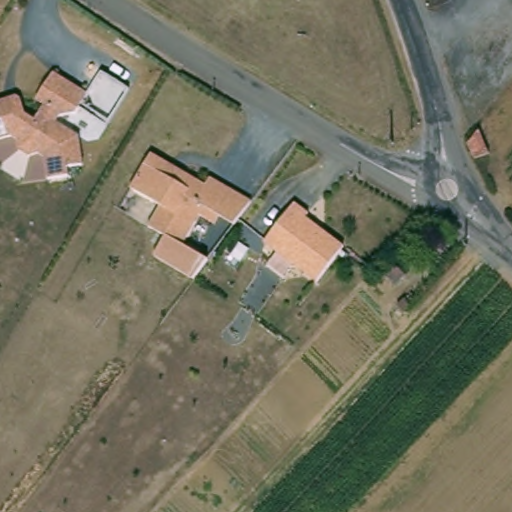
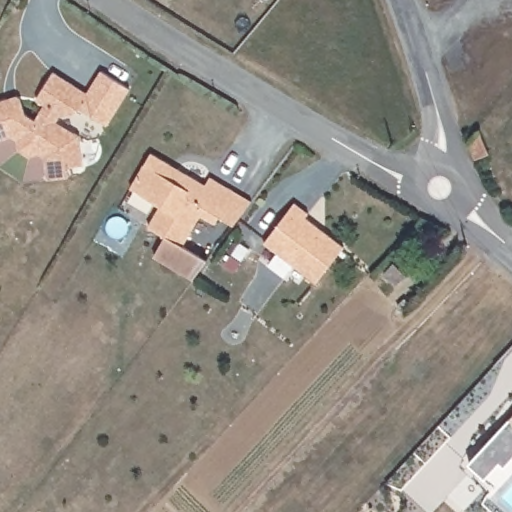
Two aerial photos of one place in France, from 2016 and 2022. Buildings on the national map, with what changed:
unchanged [(84,135),(87,161),(88,165),(85,165),(73,167),(74,177),(53,179),(50,158),(44,154),(34,157),(24,150),(23,140),(16,136),(0,142),(0,104),(11,100),(21,96),(26,96),(28,103),(33,114),(40,119),(49,104),(41,99),(58,72),(93,94),(81,114),(65,115),(61,122),(80,134),(84,135)]
unchanged [(472,144),(483,130),(490,153),(478,159),(472,144)]
unchanged [(236,224),(221,215),(217,224),(202,214),(184,245),(151,225),(163,204),(133,187),(154,153),(208,184),(213,177),(236,191),(253,201),(236,224)]
unchanged [(295,204),(309,214),(306,218),(345,247),(318,283),(265,243),(295,204)]
new [(512,512),(505,512),(488,497),(495,490),(469,466),(512,420),(512,512)]

